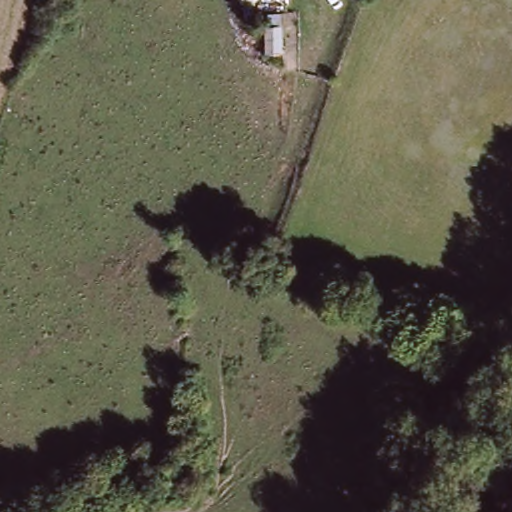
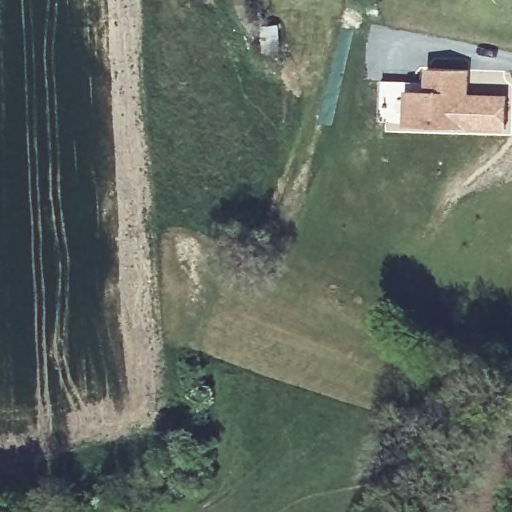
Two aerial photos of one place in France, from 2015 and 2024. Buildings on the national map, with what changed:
new [(381,123),(382,82),(426,84),(428,68),(470,70),(469,94),(506,96),(505,132),(406,125),(381,123)]

